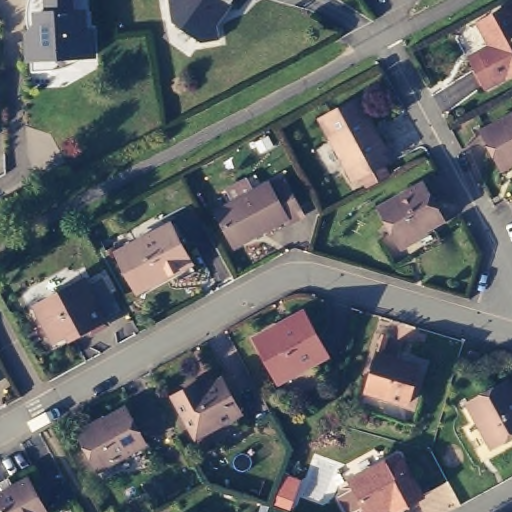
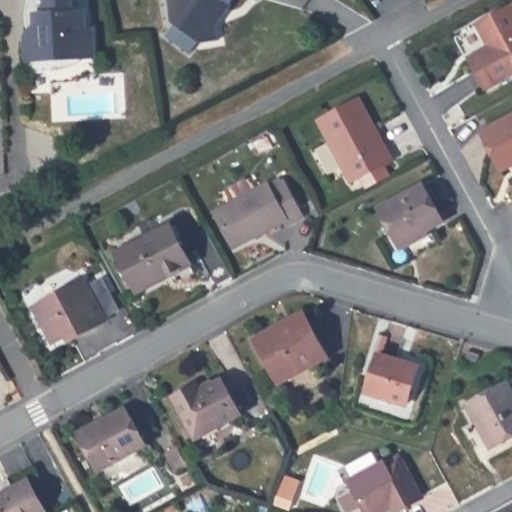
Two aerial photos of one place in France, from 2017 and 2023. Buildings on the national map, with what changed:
unchanged [(27,60),(27,37),(28,34),(28,33),(28,32),(28,31),(27,31),(27,30),(27,29),(27,28),(27,27),(27,26),(27,25),(27,24),(27,23),(26,22),(26,21),(26,20),(26,19),(26,17),(26,16),(26,14),(26,13),(26,12),(26,11),(26,10),(26,9),(27,9),(27,8),(27,7),(27,6),(27,5),(27,4),(27,3),(27,2),(27,1),(28,0),(69,0),(70,13),(82,12),(83,32),(91,32),(92,57),(85,57),(84,57),(83,58),(83,59),(82,59),(82,60),(81,60),(81,61),(80,61),(79,62),(78,62),(77,62),(77,63),(76,64),(75,64),(74,65),(73,65),(72,66),(70,66),(70,67),(69,67),(68,67),(67,67),(67,68),(66,68),(65,69),(64,69),(63,69),(62,69),(62,70),(61,70),(60,70),(58,70),(57,70),(57,71),(56,71),(55,71),(54,71),(53,71),(52,71),(50,71),(31,72),(30,60),(27,60)]
unchanged [(221,7),(215,17),(218,39),(201,42),(172,21),(168,0),(231,0),(227,7),(221,7)]
unchanged [(478,52),(490,47),(477,24),(508,7),(512,4),(512,75),(496,84),(478,52)]
unchanged [(390,165),(352,186),(320,125),(358,105),(390,165)]
unchanged [(484,136),(512,120),(512,169),(505,174),(484,136)]
unchanged [(302,217),(287,225),(284,221),(234,247),(216,212),(267,184),(280,177),(282,182),(283,182),(302,217)]
unchanged [(383,209),(427,184),(447,221),(403,245),(383,209)]
unchanged [(117,254),(122,251),(170,226),(188,260),(190,265),(163,279),(142,290),(138,292),(117,254)]
unchanged [(33,306),(83,280),(105,321),(87,331),(85,327),(52,342),(33,306)]
unchanged [(275,372),(254,334),(277,322),(303,307),(307,313),(327,351),(298,367),(278,378),(275,372)]
unchanged [(400,368),(418,373),(407,410),(366,397),(377,359),(382,342),(387,343),(382,361),(400,366),(400,368)]
unchanged [(467,350),(479,354),(475,366),(464,362),(467,350)]
unchanged [(467,405),(507,382),(512,393),(512,437),(496,446),(492,448),(477,421),(467,405)]
unchanged [(201,436),(198,438),(177,401),(200,389),(204,397),(227,384),(245,418),(225,430),(204,442),(201,436)]
unchanged [(78,435),(125,408),(144,444),(98,471),(78,435)]
unchanged [(337,497),(340,488),(350,483),(348,481),(398,455),(422,498),(400,511),(396,505),(390,508),(382,512),(365,512),(345,512),(337,497)]
unchanged [(2,494),(0,491),(0,484),(8,480),(12,487),(27,480),(44,512),(0,512),(0,495),(2,494)]

